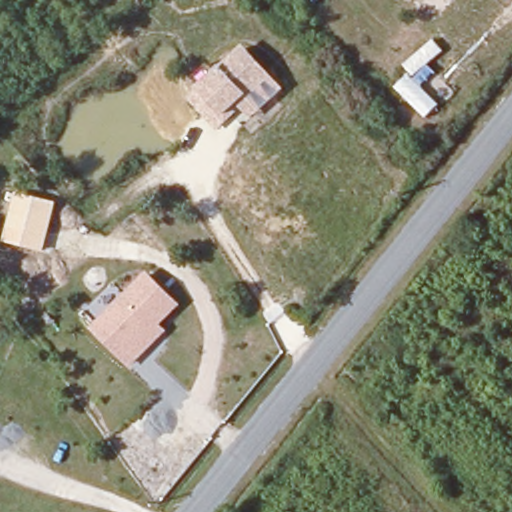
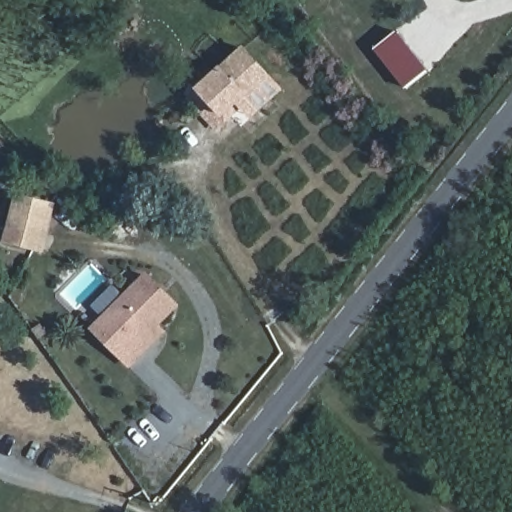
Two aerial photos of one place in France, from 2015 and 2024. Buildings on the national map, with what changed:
new [(376,50),(399,32),(430,72),(407,90),(376,50)]
unchanged [(244,119),(234,107),(218,121),(193,91),(239,52),(263,81),(273,94),(244,119)]
unchanged [(42,253),(5,240),(19,194),(56,206),(42,253)]
unchanged [(148,348),(133,366),(95,333),(144,276),(175,304),(159,324),(165,329),(148,348)]

